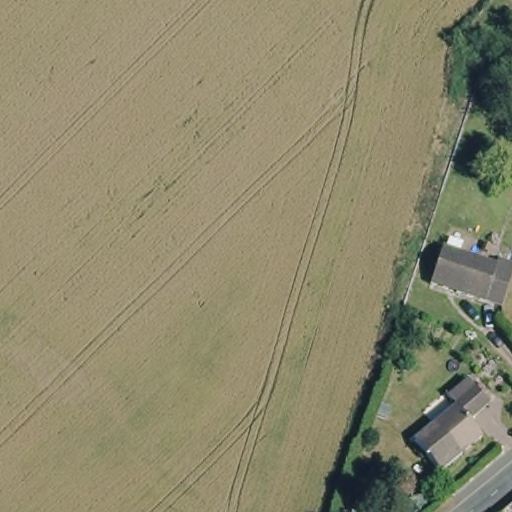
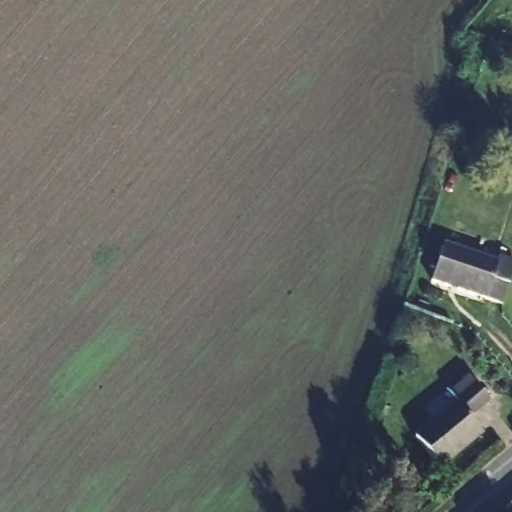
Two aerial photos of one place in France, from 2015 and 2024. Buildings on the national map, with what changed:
unchanged [(505,298),(490,294),(438,278),(449,241),(502,258),(512,262),(512,277),(505,296),(505,298)]
unchanged [(441,464),(415,433),(454,402),(447,392),(467,376),(487,400),(467,417),(480,432),(441,464)]

